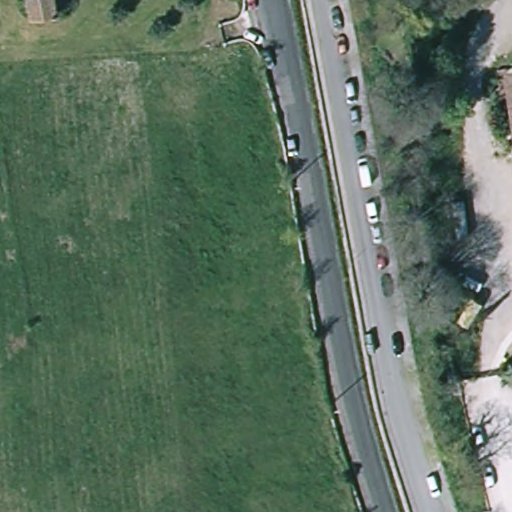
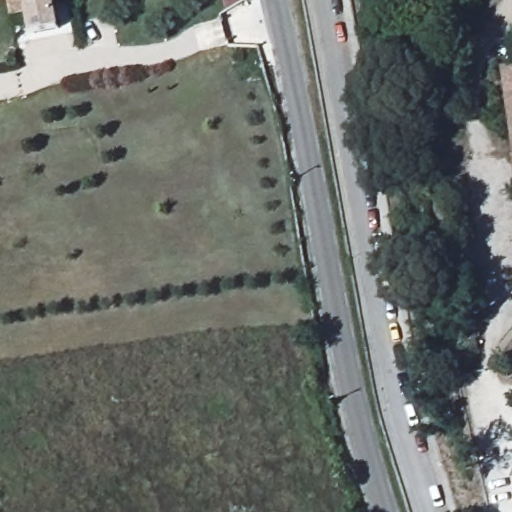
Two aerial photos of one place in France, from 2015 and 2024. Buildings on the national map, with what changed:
unchanged [(30,12),(27,0),(52,0),(54,10),(30,12)]
unchanged [(507,72),(512,72),(512,110),(507,72)]

